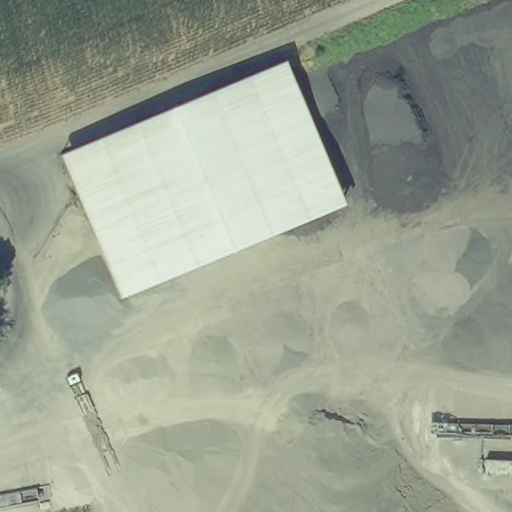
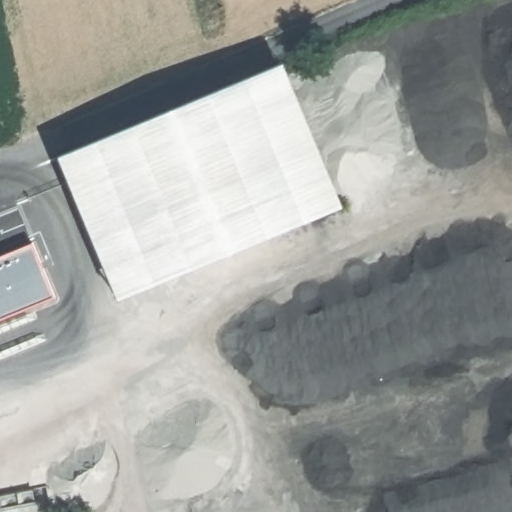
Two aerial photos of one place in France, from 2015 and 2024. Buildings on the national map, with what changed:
unchanged [(343,207),(120,300),(59,155),(283,61),(343,207)]
new [(55,299),(0,321),(0,255),(31,242),(55,299)]

